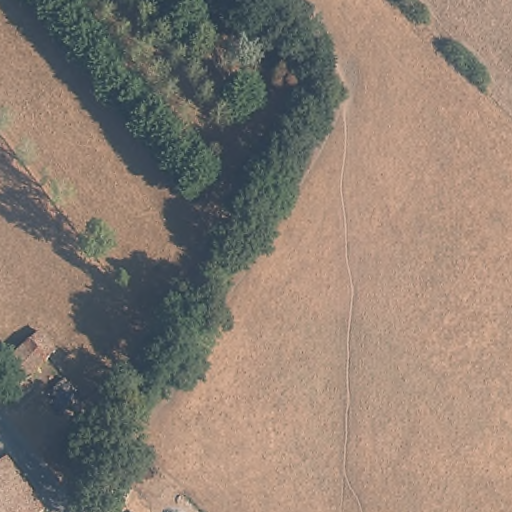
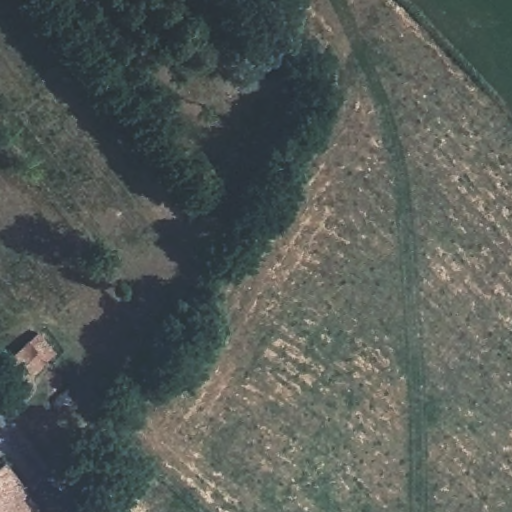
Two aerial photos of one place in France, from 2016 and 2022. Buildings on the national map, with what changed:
unchanged [(55,351),(30,372),(37,380),(28,388),(16,375),(8,380),(2,371),(17,359),(10,351),(34,327),(55,351)]
unchanged [(7,462),(42,512),(0,512),(0,467),(7,462)]

